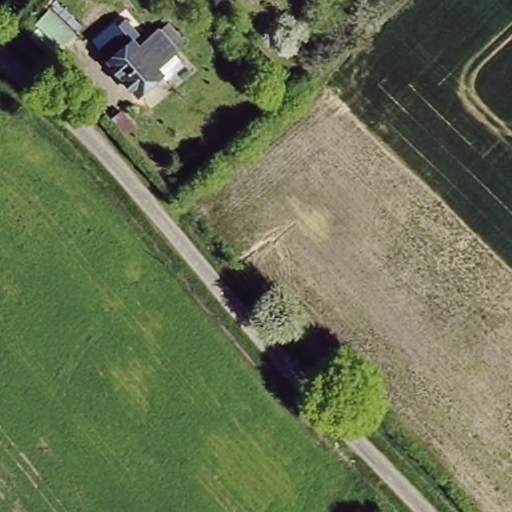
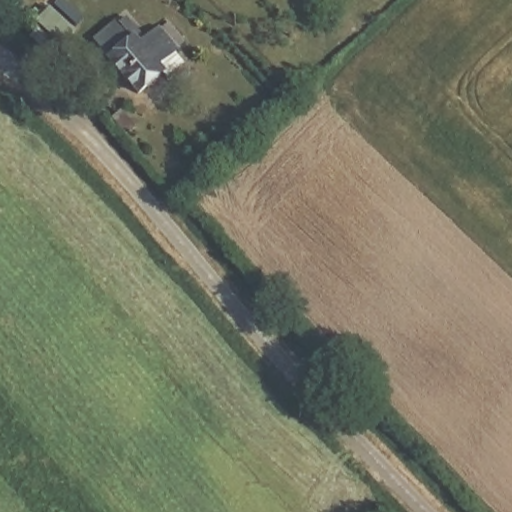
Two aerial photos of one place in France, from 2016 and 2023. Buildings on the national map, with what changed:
unchanged [(120,16),(137,33),(165,18),(193,53),(144,94),(92,38),(120,16)]

